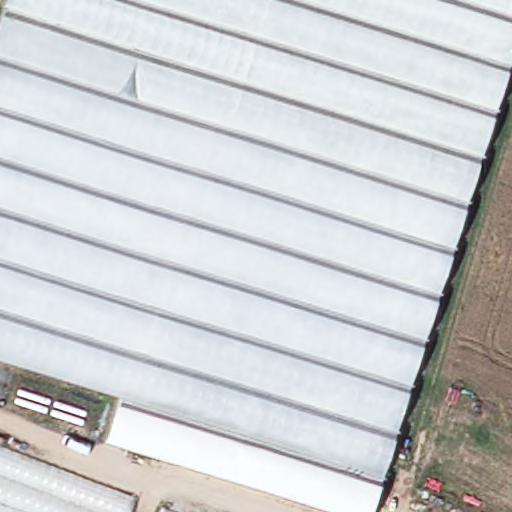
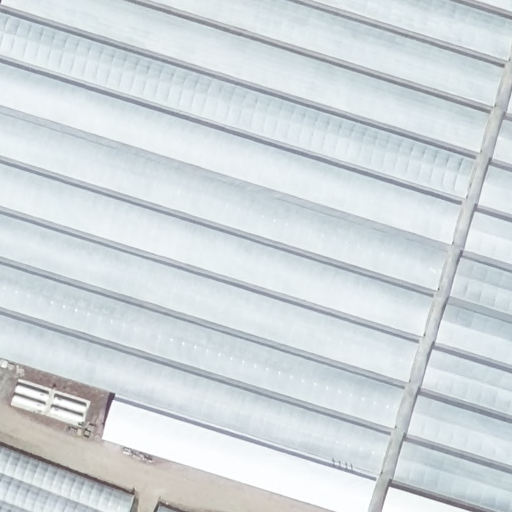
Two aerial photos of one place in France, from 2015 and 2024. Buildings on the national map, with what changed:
unchanged [(107,438),(121,387),(0,350),(0,11),(3,0),(512,0),(512,62),(373,512),(364,512),(107,438)]
new [(512,62),(512,512),(373,512),(512,62)]
unchanged [(140,501),(135,512),(0,512),(0,446),(140,501)]
unchanged [(172,509),(180,512),(170,512),(172,509)]

